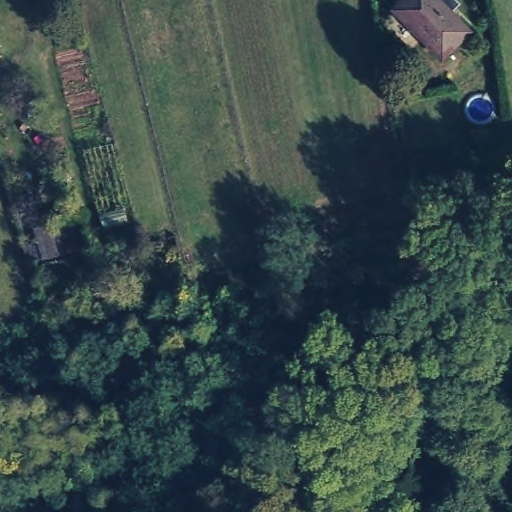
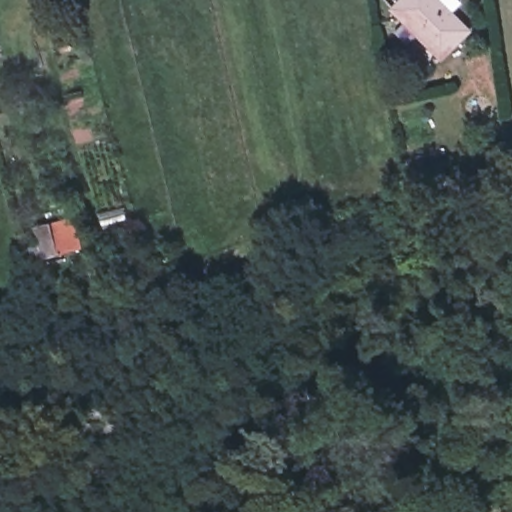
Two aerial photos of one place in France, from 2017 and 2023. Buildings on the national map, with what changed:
unchanged [(441,60),(393,9),(402,0),(439,0),(470,32),(441,60)]
unchanged [(404,180),(400,159),(437,153),(441,177),(406,186),(404,180)]

